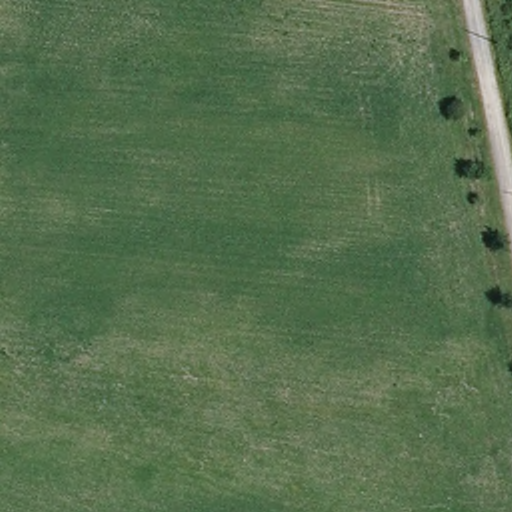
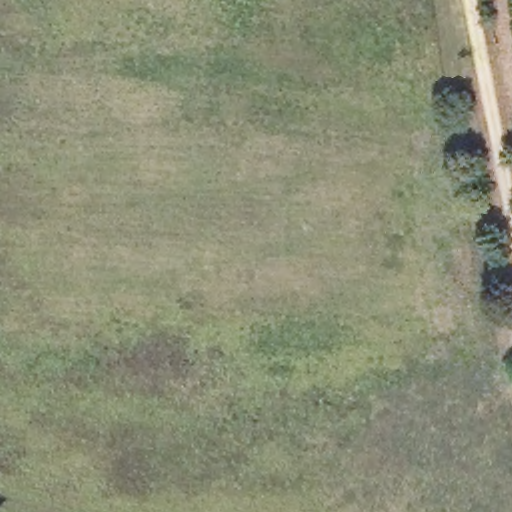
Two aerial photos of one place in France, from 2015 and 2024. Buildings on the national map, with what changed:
[]

